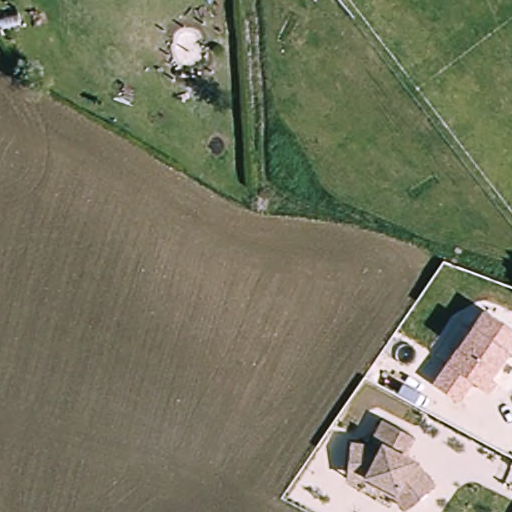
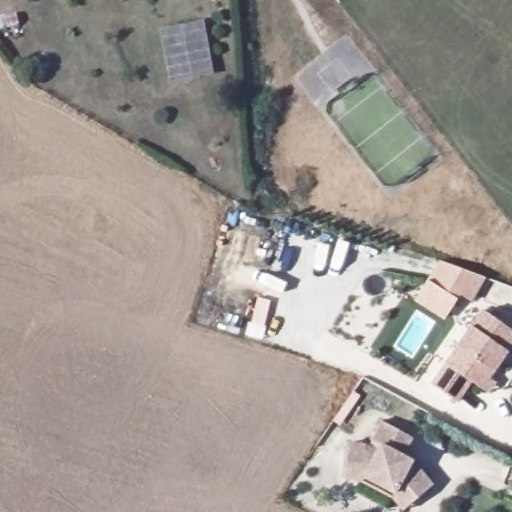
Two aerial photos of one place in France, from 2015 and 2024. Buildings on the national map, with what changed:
new [(160,28),(206,21),(214,75),(168,82),(160,28)]
new [(487,277),(471,304),(458,297),(445,320),(415,300),(440,260),(487,277)]
unchanged [(509,351),(495,371),(492,379),(498,383),(490,393),(473,382),(460,401),(435,384),(458,347),(472,326),(485,311),(512,330),(512,347),(509,351)]
unchanged [(403,511),(390,497),(364,483),(345,482),(350,442),(368,444),(383,419),(415,439),(407,456),(415,460),(435,485),(403,511)]

